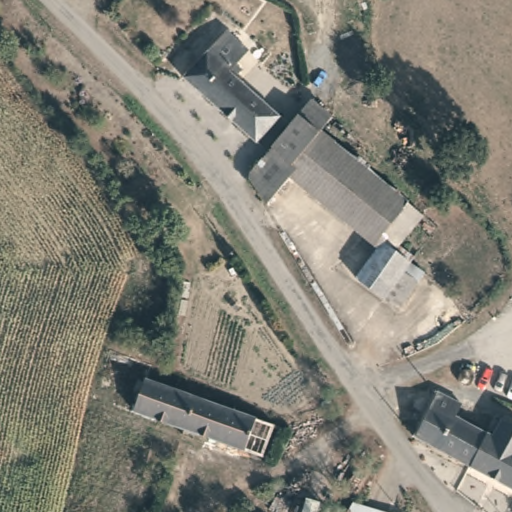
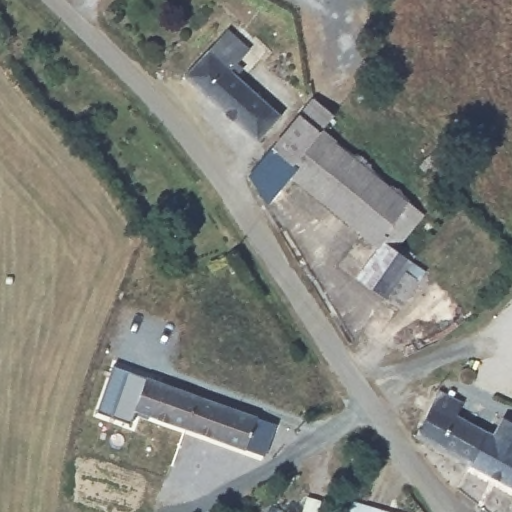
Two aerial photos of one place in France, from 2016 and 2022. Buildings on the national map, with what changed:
unchanged [(202,58),(227,30),(245,48),(233,61),(242,70),(237,76),(281,116),(257,142),(185,76),(202,58)]
unchanged [(296,166),(298,168),(292,176),(269,204),(250,175),(313,100),(333,115),(321,129),(325,133),(296,166)]
unchanged [(408,202),(383,232),(382,230),(373,243),(292,176),(298,168),(296,166),(325,133),(337,142),(407,199),(408,202)]
unchanged [(419,282),(400,307),(359,278),(370,262),(388,235),(383,232),(408,202),(424,213),(397,249),(411,261),(426,270),(419,282)]
new [(137,409),(132,424),(96,412),(114,365),(149,378),(137,409)]
unchanged [(460,375),(465,369),(472,369),(477,376),(470,384),(466,384),(460,375)]
unchanged [(266,456),(137,409),(151,374),(277,424),(266,456)]
unchanged [(458,414),(487,431),(471,464),(464,460),(417,436),(439,389),(463,403),(458,414)]
unchanged [(487,431),(494,434),(503,418),(512,422),(512,486),(471,464),(487,431)]
unchanged [(352,504),(358,504),(380,511),(379,512),(347,512),(352,504)]
unchanged [(380,511),(385,512),(379,512),(380,511)]

